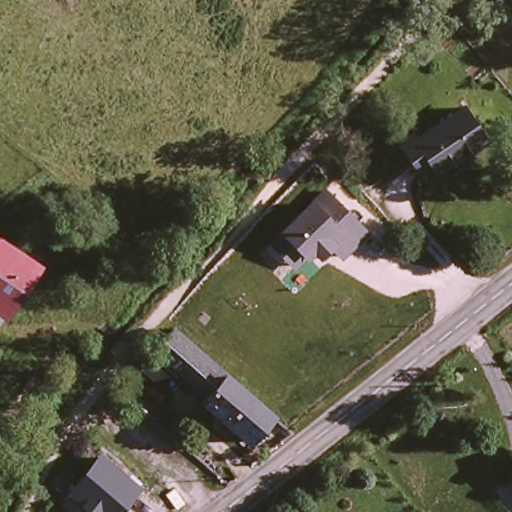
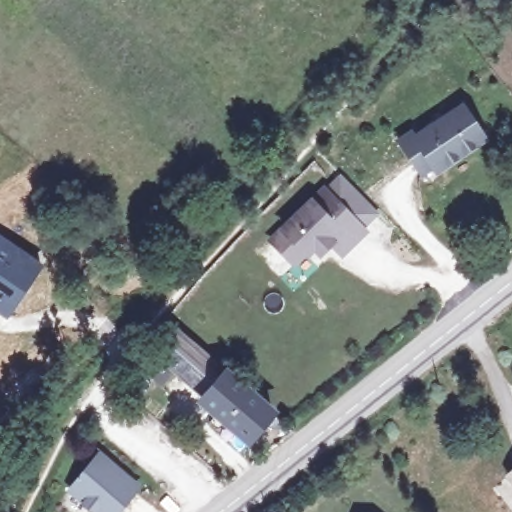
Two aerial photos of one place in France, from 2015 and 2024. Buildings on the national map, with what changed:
unchanged [(489,140),(443,175),(436,165),(421,176),(396,145),(415,130),(421,140),(463,107),(489,140)]
unchanged [(344,262),(332,250),(320,260),(314,254),(297,270),(268,242),(325,184),(372,232),(344,262)]
unchanged [(10,327),(0,318),(0,228),(3,230),(55,271),(10,327)]
unchanged [(279,415),(255,445),(240,433),(231,445),(212,430),(221,417),(153,362),(180,330),(279,415)]
unchanged [(90,512),(65,493),(101,450),(145,487),(125,512),(90,512)]

